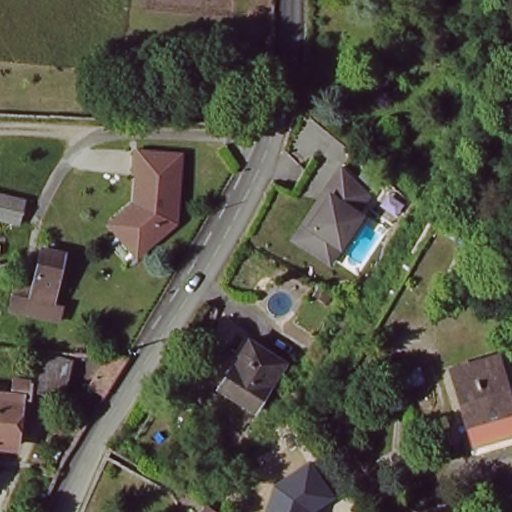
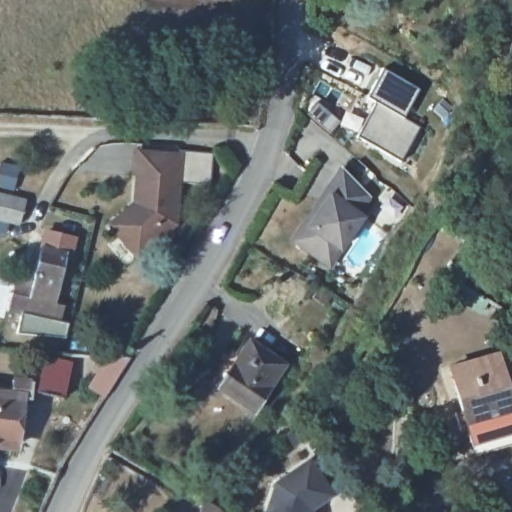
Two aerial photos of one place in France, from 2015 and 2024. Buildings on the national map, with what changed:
new [(420,90),(405,117),(421,126),(402,161),(358,137),(377,103),(368,97),(384,70),(420,90)]
unchanged [(184,150),(182,223),(141,258),(104,224),(129,202),(135,149),(184,150)]
unchanged [(383,188),(334,269),(290,243),(341,164),(383,188)]
unchanged [(0,222),(0,193),(26,198),(21,226),(0,222)]
unchanged [(64,266),(52,321),(28,314),(31,300),(39,260),(64,266)]
unchanged [(284,360),(253,410),(220,388),(238,359),(233,354),(246,336),(284,360)]
unchanged [(76,376),(92,351),(138,355),(118,389),(76,376)]
unchanged [(38,383),(47,353),(73,359),(66,389),(38,383)]
unchanged [(471,448),(453,364),(503,353),(512,400),(512,437),(471,448)]
unchanged [(0,452),(0,397),(13,398),(13,381),(28,382),(22,453),(0,452)]
unchanged [(260,501),(266,483),(299,462),(320,495),(299,508),(301,512),(261,512),(264,502),(260,501)]
unchanged [(210,512),(209,512),(209,511),(210,512)]
unchanged [(258,512),(256,512),(256,511),(258,512)]

